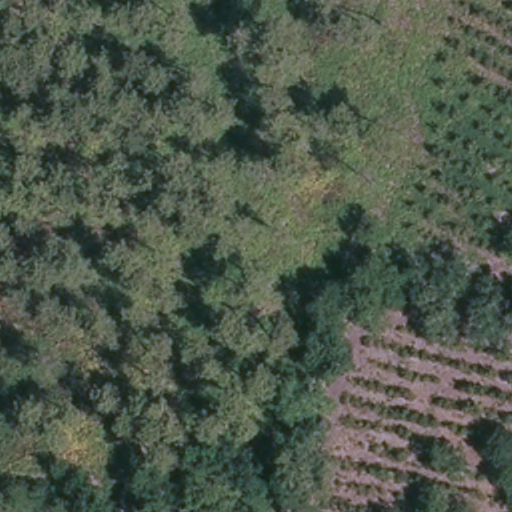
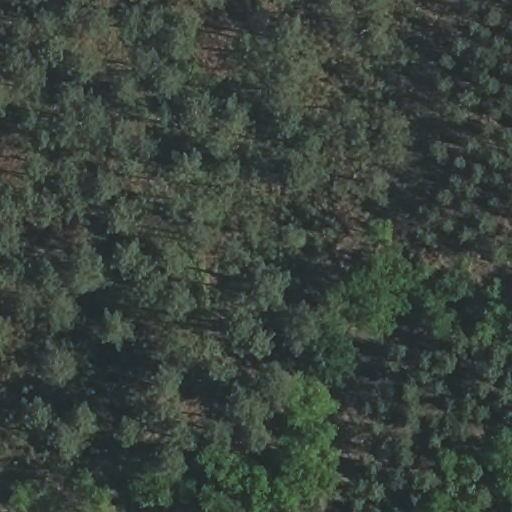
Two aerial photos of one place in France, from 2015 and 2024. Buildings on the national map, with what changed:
[]

